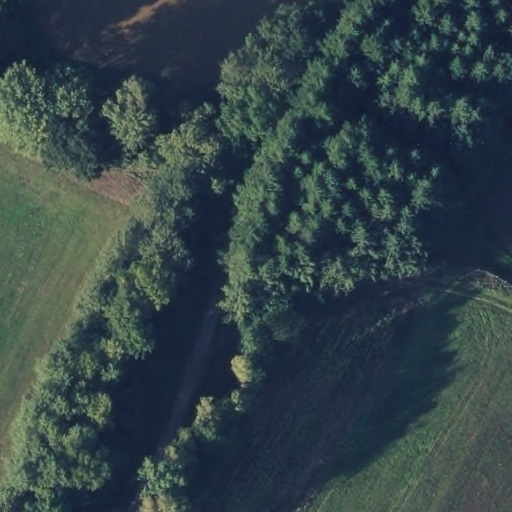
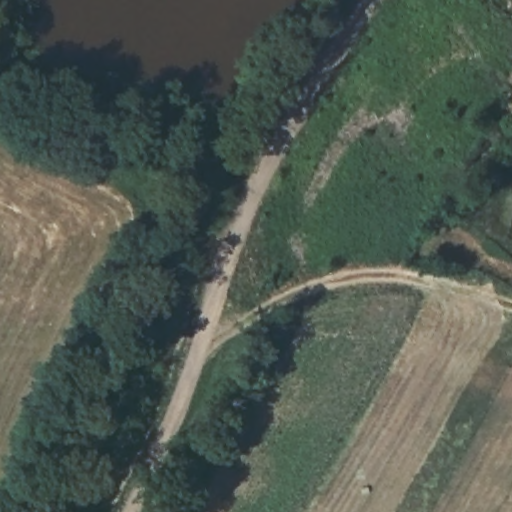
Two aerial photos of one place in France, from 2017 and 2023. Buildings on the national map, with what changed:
[]

